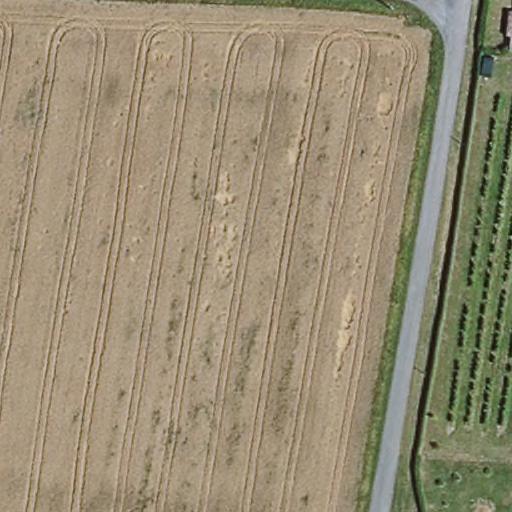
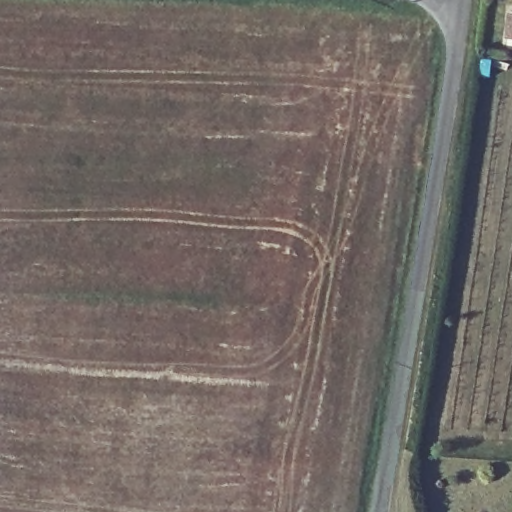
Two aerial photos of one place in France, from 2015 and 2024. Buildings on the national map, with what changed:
unchanged [(506,9),(512,10),(512,36),(501,34),(506,9)]

